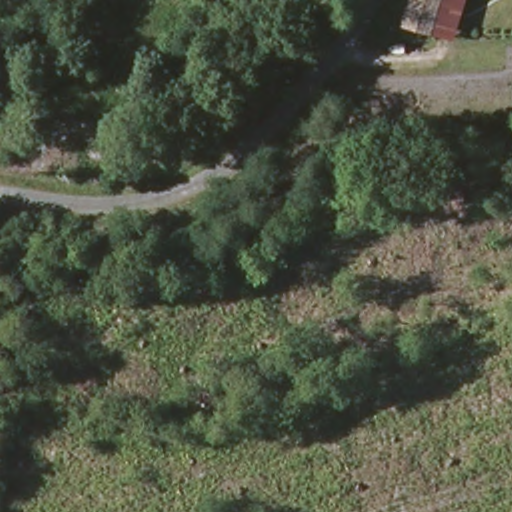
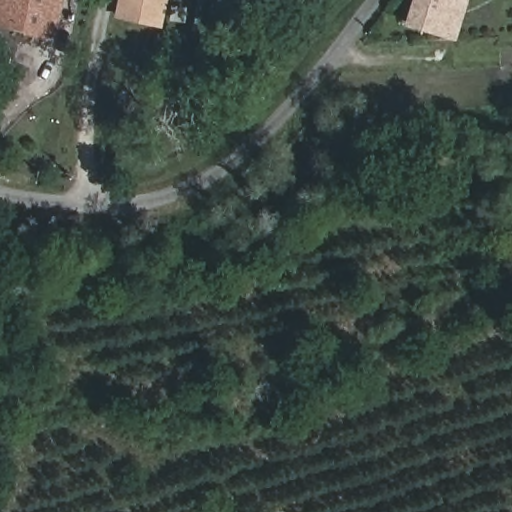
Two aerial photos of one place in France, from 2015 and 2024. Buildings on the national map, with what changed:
new [(56,37),(0,26),(0,0),(64,0),(56,37)]
new [(159,26),(117,18),(121,0),(164,0),(159,26)]
unchanged [(410,24),(417,0),(446,0),(436,32),(410,24)]
unchanged [(446,0),(467,0),(457,39),(436,32),(446,0)]

